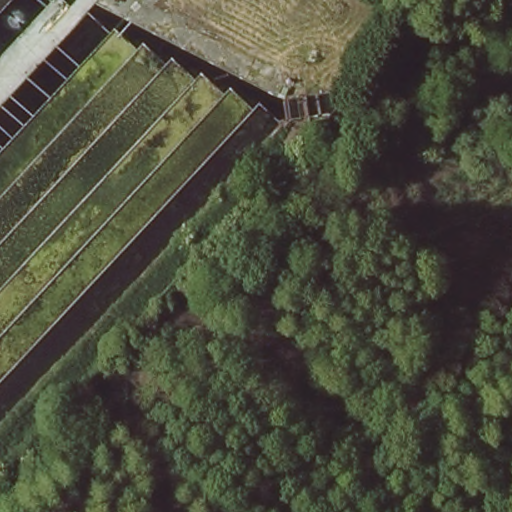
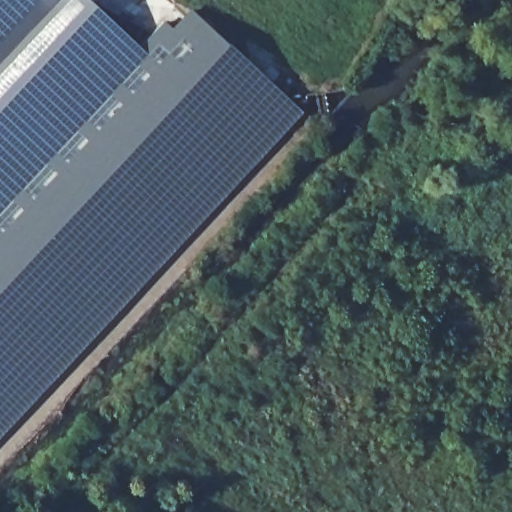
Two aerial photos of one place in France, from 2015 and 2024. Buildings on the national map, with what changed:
new [(140,44),(165,19),(172,25),(191,8),(243,55),(303,111),(197,228),(138,288),(0,436),(0,0),(92,0),(140,44)]
demolished [(314,77),(303,103),(276,92),(287,66),(314,77)]

